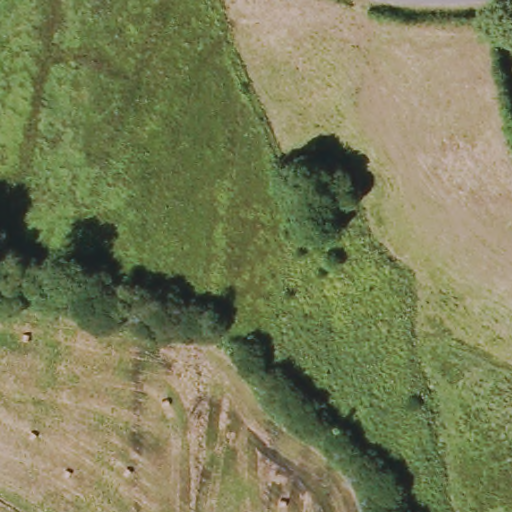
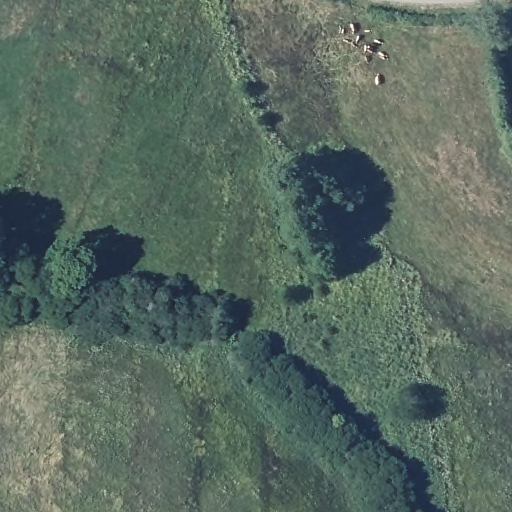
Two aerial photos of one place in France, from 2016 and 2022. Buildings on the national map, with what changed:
[]

